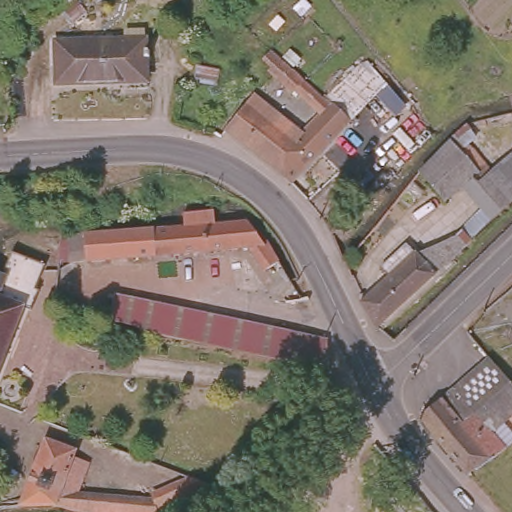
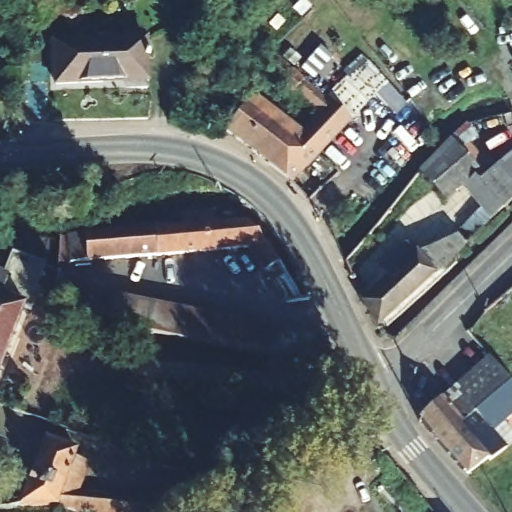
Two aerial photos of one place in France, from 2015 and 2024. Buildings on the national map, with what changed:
unchanged [(150,79),(125,81),(125,86),(60,91),(58,45),(147,40),(150,79)]
unchanged [(297,91),(295,94),(270,71),(273,69),(265,60),(282,49),(334,104),(322,116),(297,91)]
unchanged [(305,134),(322,116),(334,104),(373,64),(410,100),(397,114),(376,95),(290,184),(270,168),(305,134)]
unchanged [(255,94),(305,134),(270,168),(225,133),(255,94)]
unchanged [(375,271),(407,243),(415,252),(451,235),(482,207),(443,166),(465,146),(490,173),(512,152),(512,199),(378,323),(363,299),(384,281),(375,271)]
unchanged [(260,281),(244,258),(80,265),(80,237),(182,232),(181,219),(214,218),(214,231),(248,229),(255,233),(257,234),(260,231),(281,266),(260,281)]
unchanged [(6,276),(13,256),(49,268),(40,291),(42,293),(32,318),(22,315),(0,370),(0,274),(6,276)]
unchanged [(329,344),(332,377),(255,358),(247,356),(220,350),(184,343),(163,340),(150,338),(134,331),(113,324),(118,302),(325,343),(329,344)]
unchanged [(421,419),(495,361),(504,371),(512,380),(512,399),(483,423),(507,449),(492,463),(490,460),(477,470),(468,478),(438,443),(421,419)]
unchanged [(50,434),(98,457),(78,492),(155,502),(193,483),(224,496),(187,512),(95,512),(65,503),(8,502),(50,434)]

